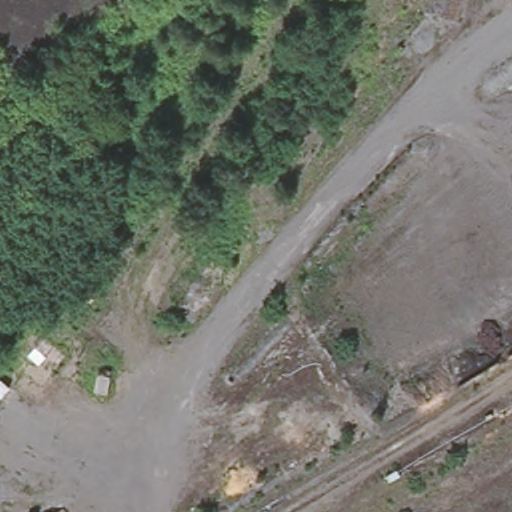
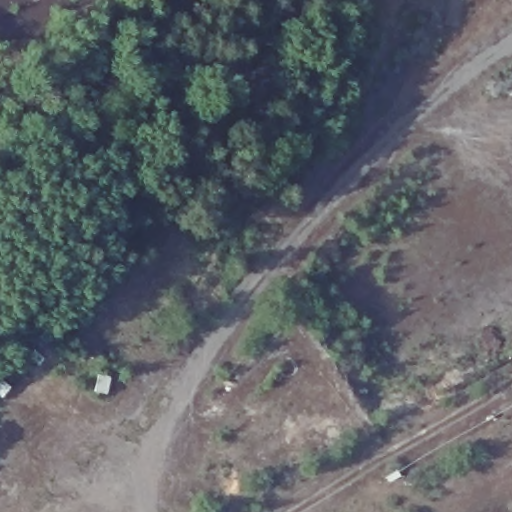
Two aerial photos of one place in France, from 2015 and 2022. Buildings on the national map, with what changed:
unchanged [(43,338),(65,357),(41,387),(18,368),(43,338)]

